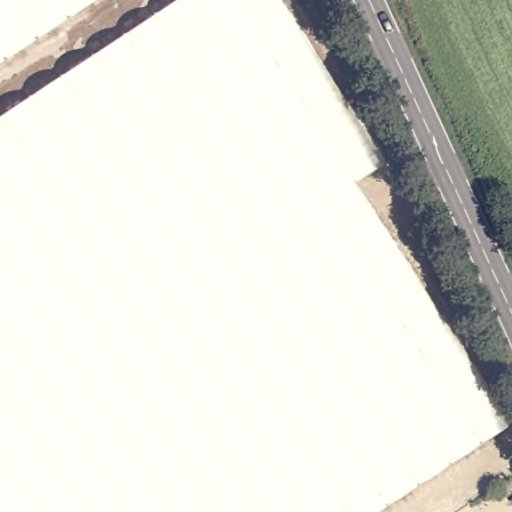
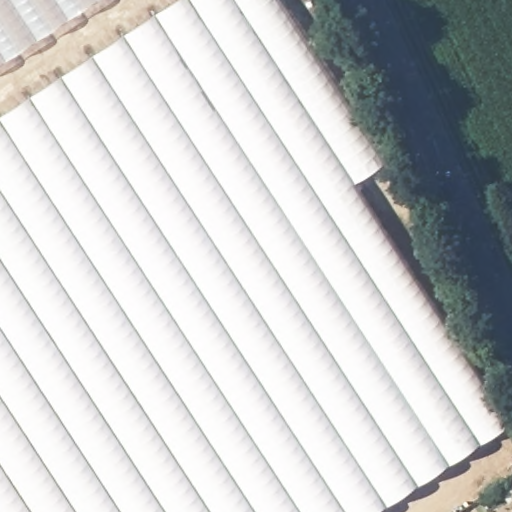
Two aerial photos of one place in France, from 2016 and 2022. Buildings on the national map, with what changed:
unchanged [(0,0),(96,0),(0,63),(0,0)]
unchanged [(276,0),(385,164),(356,185),(510,423),(377,512),(0,512),(0,117),(176,0),(276,0)]

